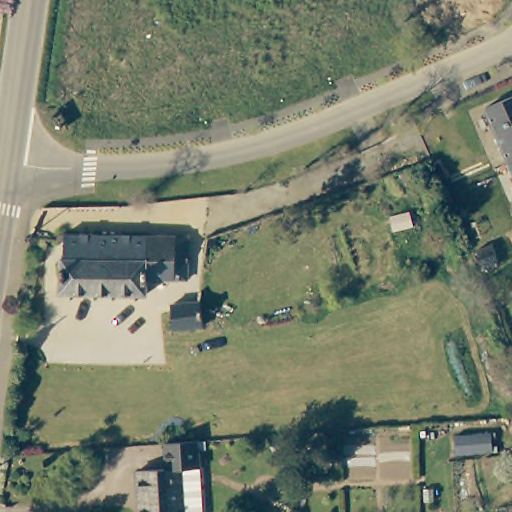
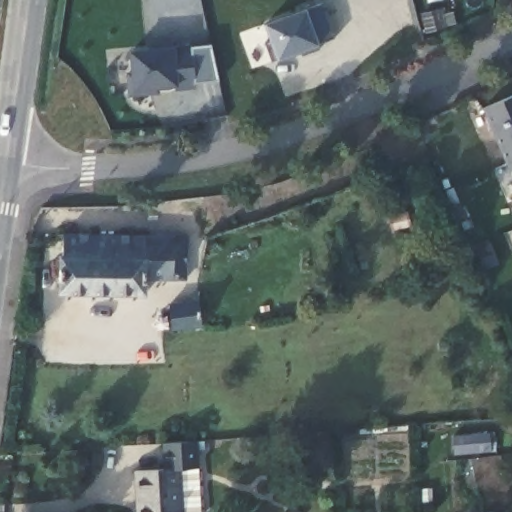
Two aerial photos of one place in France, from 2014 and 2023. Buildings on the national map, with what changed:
new [(270,39),(264,23),(307,8),(320,4),(334,38),(319,43),(276,59),(271,63),(266,43),(270,39)]
new [(132,69),(129,50),(175,47),(213,43),(219,80),(197,83),(197,89),(177,88),(159,89),(161,97),(129,98),(126,70),(132,69)]
unchanged [(511,156),(488,101),(512,91),(512,156),(511,156)]
unchanged [(512,156),(512,160),(511,156),(512,156)]
unchanged [(185,271),(145,271),(145,291),(59,289),(59,251),(64,251),(65,229),(185,232),(185,271)]
unchanged [(168,325),(168,300),(197,300),(197,325),(168,325)]
unchanged [(494,428),(494,453),(456,451),(457,427),(494,428)]
unchanged [(163,469),(160,435),(194,432),(197,467),(175,469),(179,512),(137,512),(134,471),(163,469)]
unchanged [(179,512),(175,469),(197,467),(200,512),(179,512)]

